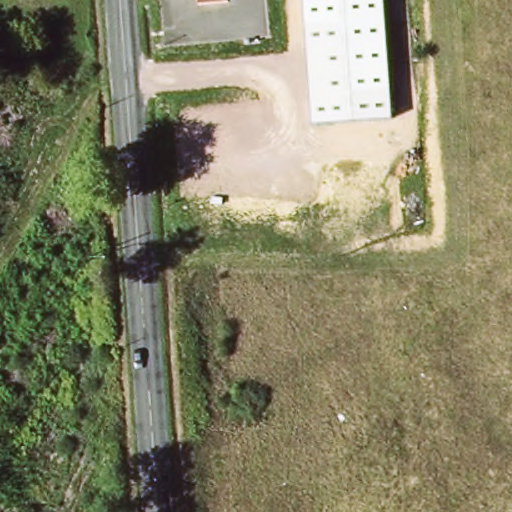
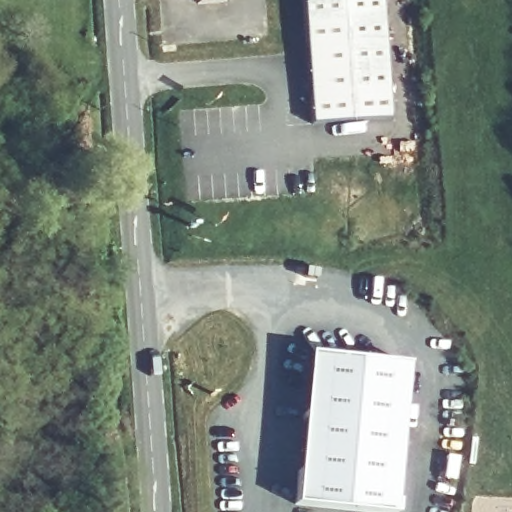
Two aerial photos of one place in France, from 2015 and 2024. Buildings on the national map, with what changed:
unchanged [(200,0),(195,1),(195,0),(200,0)]
unchanged [(311,126),(302,0),(380,0),(390,119),(311,126)]
new [(412,364),(398,512),(354,512),(295,507),(310,354),(412,364)]

